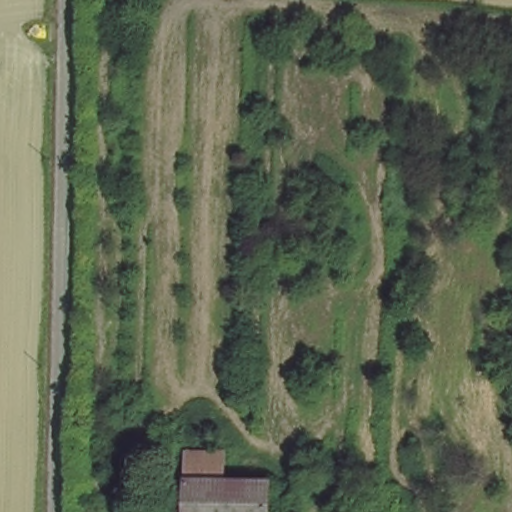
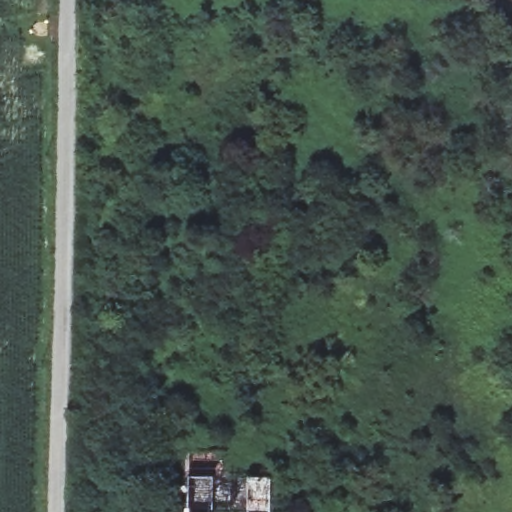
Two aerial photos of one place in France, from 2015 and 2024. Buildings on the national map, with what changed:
unchanged [(222,453),(222,479),(270,480),(270,512),(188,512),(189,452),(222,453)]

